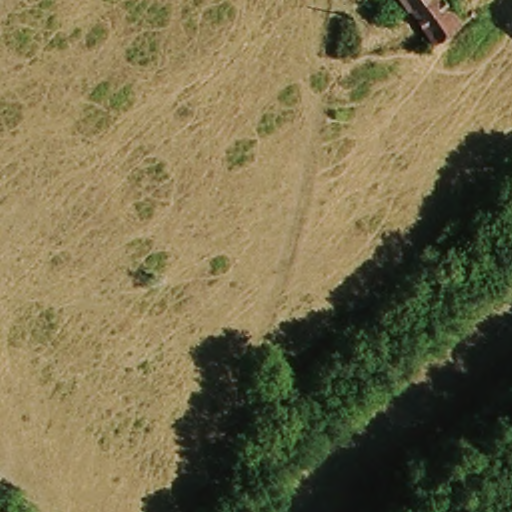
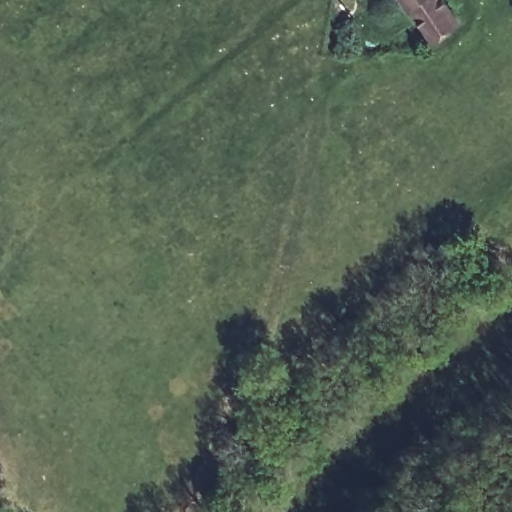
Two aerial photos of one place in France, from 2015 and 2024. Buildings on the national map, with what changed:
unchanged [(404,0),(443,0),(454,13),(429,32),(404,0)]

